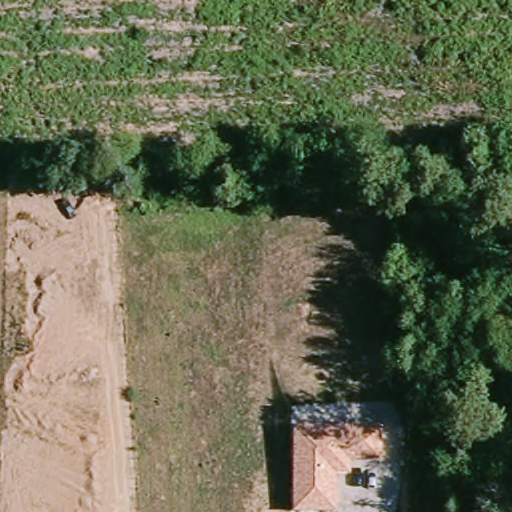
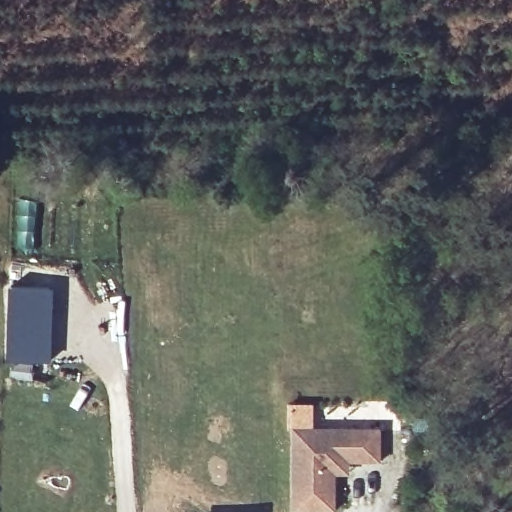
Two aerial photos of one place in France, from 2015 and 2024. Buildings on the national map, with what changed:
new [(10,285),(54,288),(51,364),(34,363),(32,380),(8,377),(10,285)]
unchanged [(381,424),(381,462),(348,461),(348,476),(338,476),(338,511),(294,511),(294,424),(381,424)]

